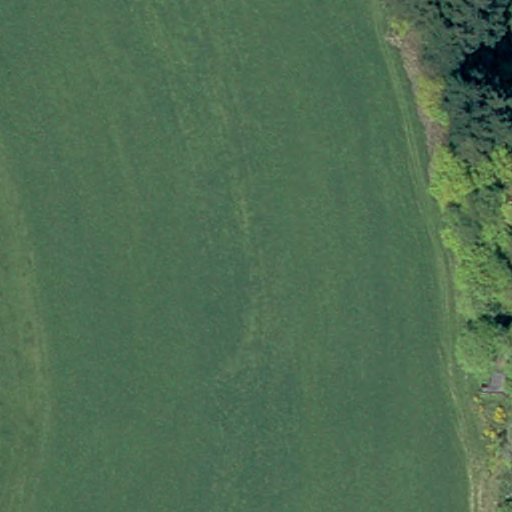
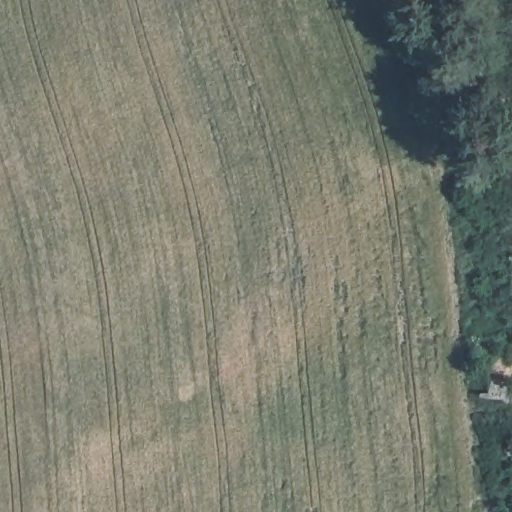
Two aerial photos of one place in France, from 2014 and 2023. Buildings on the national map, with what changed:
[]

